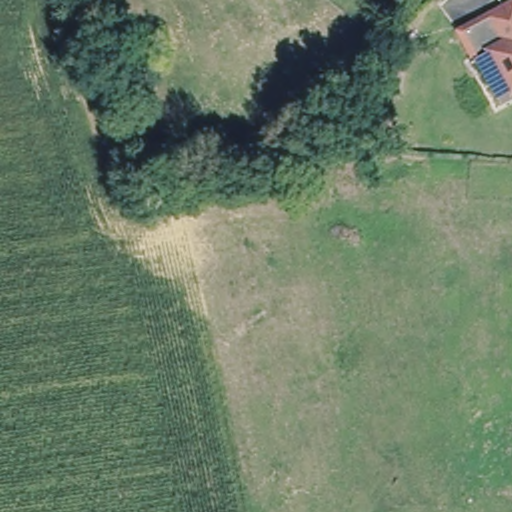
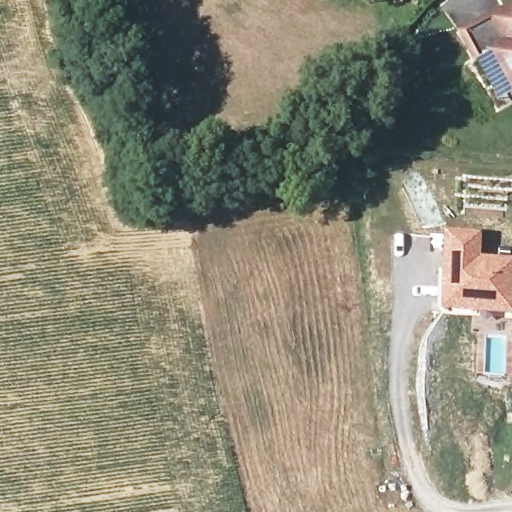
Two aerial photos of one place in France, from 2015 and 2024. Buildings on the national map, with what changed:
unchanged [(499,60),(486,70),(480,60),(469,43),(481,34),(494,26),(512,15),(512,77),(499,60)]
unchanged [(403,105),(400,89),(419,86),(421,100),(403,105)]
new [(441,232),(481,235),(480,257),(512,259),(512,315),(438,311),(441,232)]

